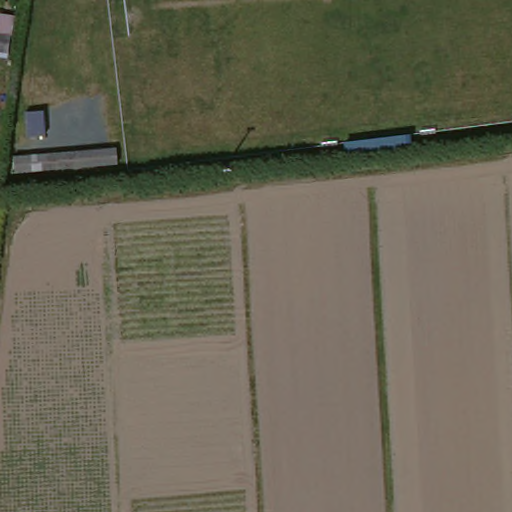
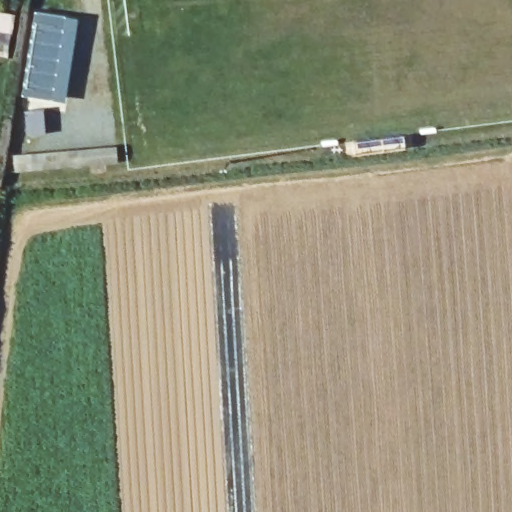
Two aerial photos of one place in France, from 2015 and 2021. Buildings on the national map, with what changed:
new [(0,9),(17,11),(10,56),(0,54),(0,9)]
new [(79,18),(66,100),(23,94),(36,10),(79,18)]
demolished [(0,49),(0,32),(12,34),(8,51),(0,49)]
unchanged [(346,158),(344,144),(409,135),(409,146),(346,158)]
unchanged [(113,163),(18,173),(16,157),(111,146),(113,163)]

